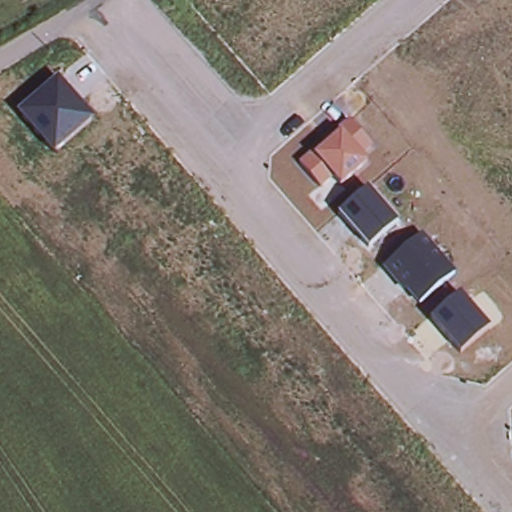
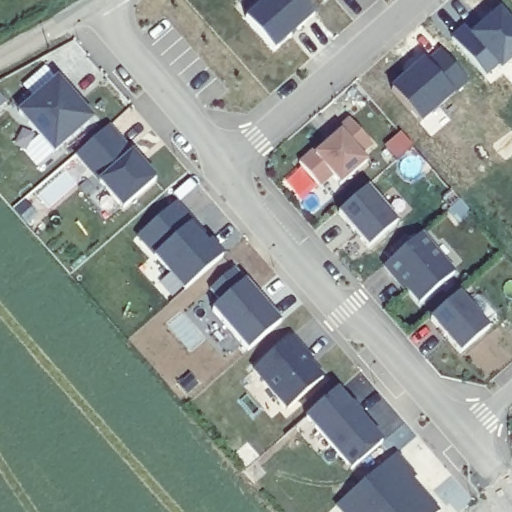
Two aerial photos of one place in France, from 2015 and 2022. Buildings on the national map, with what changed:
new [(266,0),(302,0),(316,15),(274,52),(246,19),(266,0)]
unchanged [(321,0),(329,0),(325,4),(321,0)]
new [(466,22),(473,30),(504,5),(512,16),(512,55),(503,64),(500,60),(487,70),(453,33),(466,22)]
new [(442,46),(470,80),(424,117),(395,84),(442,46)]
unchanged [(19,113),(57,80),(94,120),(55,154),(19,113)]
unchanged [(299,161),(349,120),(372,147),(362,158),(367,163),(341,185),(332,177),(321,188),(299,161)]
unchanged [(155,183),(124,211),(76,157),(108,130),(155,183)]
unchanged [(340,214),(368,190),(397,224),(369,248),(340,214)]
new [(177,200),(222,251),(185,283),(138,234),(177,200)]
unchanged [(405,290),(401,292),(382,268),(422,235),(455,274),(419,303),(405,290)]
new [(281,317),(250,345),(214,305),(220,297),(212,287),(235,267),(281,317)]
unchanged [(431,319),(459,295),(490,329),(461,352),(431,319)]
new [(254,372),(292,340),(306,356),(303,358),(322,382),(289,411),(254,372)]
new [(307,417),(336,391),(381,445),(352,468),(307,417)]
new [(415,479),(411,482),(436,512),(341,512),(337,507),(395,457),(415,479)]

